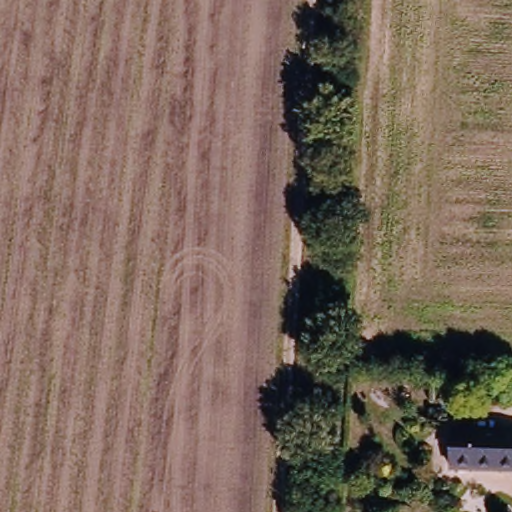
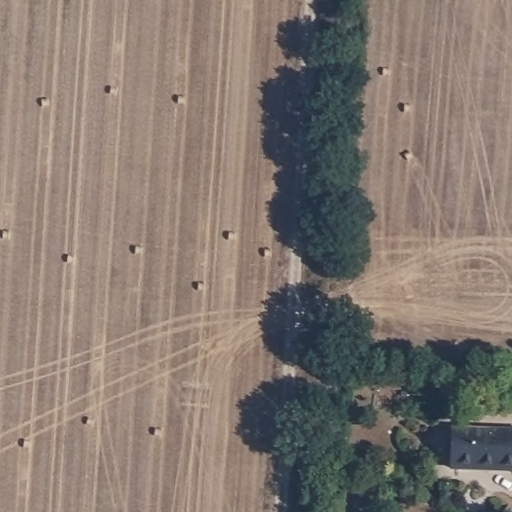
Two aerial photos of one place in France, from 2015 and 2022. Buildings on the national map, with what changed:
unchanged [(458,435),(512,438),(512,478),(455,473),(458,435)]

